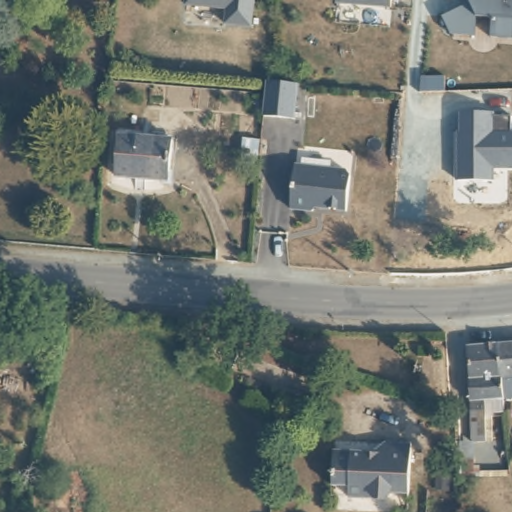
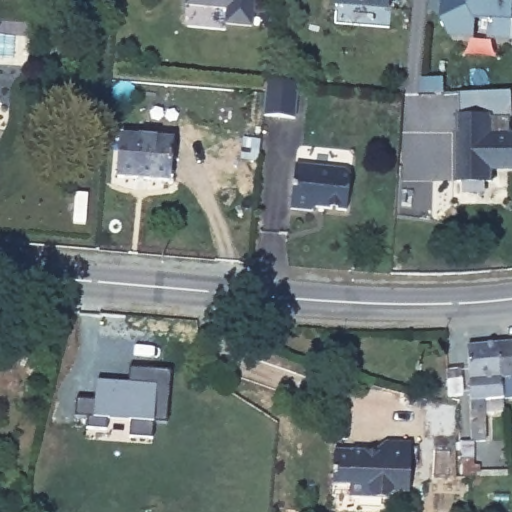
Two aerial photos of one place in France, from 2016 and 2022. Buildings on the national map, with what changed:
unchanged [(226,20),(227,5),(186,0),(187,0),(254,0),(252,22),(226,20)]
unchanged [(336,1),(336,0),(391,0),(391,5),(336,1)]
unchanged [(442,0),(512,0),(512,39),(491,38),(495,18),(478,17),(475,38),(450,36),(441,16),(442,0)]
unchanged [(266,80),(297,82),(295,116),(263,113),(266,88),(266,80)]
unchanged [(495,114),(494,116),(511,117),(510,132),(512,133),(512,168),(495,168),(494,181),(456,181),(460,113),(495,114)]
unchanged [(171,179),(120,175),(122,134),(174,137),(171,179)]
unchanged [(350,175),(345,210),(315,206),(311,210),(289,207),(293,165),(345,170),(350,175)]
unchanged [(471,456),(471,436),(470,436),(471,380),(469,345),(500,342),(505,396),(494,397),(493,405),(485,405),(484,436),(481,436),(481,456),(471,456)]
unchanged [(500,342),(512,342),(512,396),(505,396),(500,342)]
new [(132,421),(108,420),(107,430),(88,429),(89,416),(75,416),(77,398),(95,399),(96,380),(130,382),(131,368),(171,372),(167,423),(155,422),(154,439),(130,437),(132,421)]
unchanged [(415,433),(412,482),(397,482),(391,489),(380,488),(373,483),(368,488),(353,487),(353,477),(337,476),(339,441),(374,442),(386,432),(415,433)]

